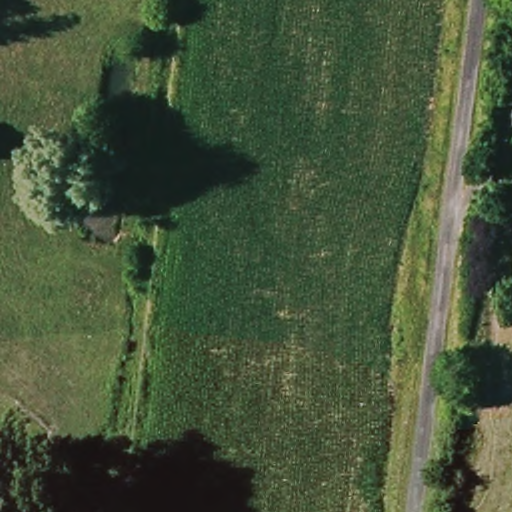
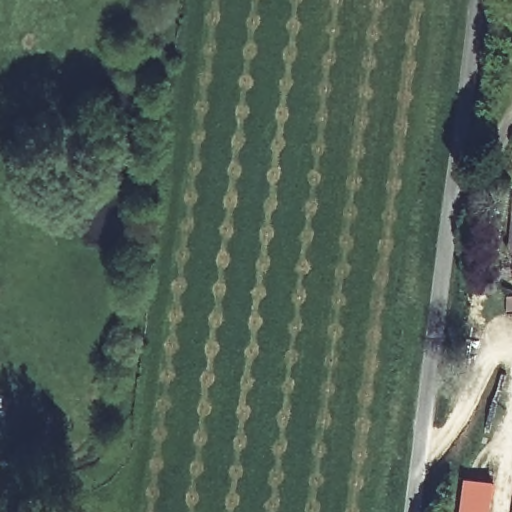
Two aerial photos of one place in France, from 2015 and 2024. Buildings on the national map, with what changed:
unchanged [(511,259),(512,254),(512,260),(511,259)]
new [(491,512),(460,512),(465,477),(495,481),(491,512)]

